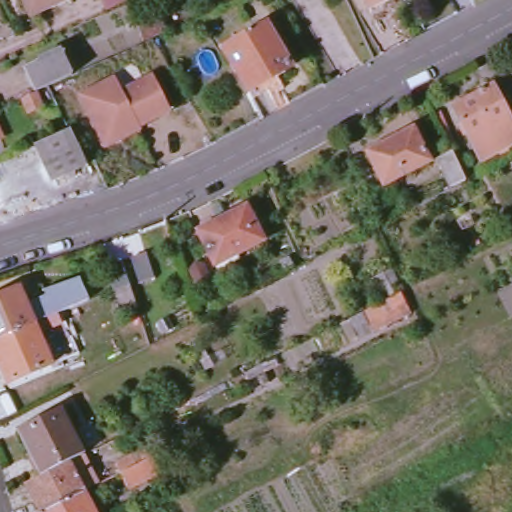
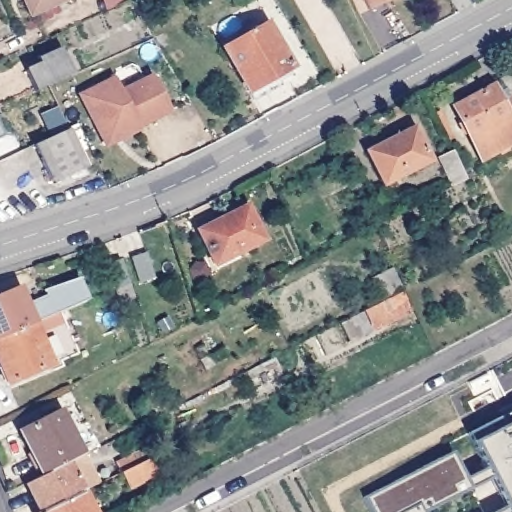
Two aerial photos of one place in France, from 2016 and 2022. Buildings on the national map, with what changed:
unchanged [(23,0),(70,0),(30,17),(23,0)]
unchanged [(365,0),(389,0),(370,9),(365,0)]
unchanged [(272,24),(295,70),(250,92),(227,45),(272,24)]
unchanged [(64,47),(75,71),(37,88),(25,63),(64,47)]
unchanged [(105,143),(103,139),(83,90),(119,75),(125,89),(157,75),(173,112),(140,126),(140,128),(105,143)]
unchanged [(512,134),(512,137),(477,155),(450,101),(487,83),(500,107),(508,103),(512,111),(512,132),(511,132),(512,134)]
unchanged [(460,141),(454,145),(439,117),(446,113),(460,141)]
unchanged [(55,181),(37,143),(67,129),(70,127),(88,165),(55,181)]
unchanged [(412,127),(430,161),(382,185),(365,151),(412,127)]
unchanged [(433,153),(447,147),(461,173),(447,180),(433,153)]
unchanged [(245,206),(262,240),(215,265),(197,231),(245,206)]
unchanged [(145,250),(153,275),(139,280),(131,256),(145,250)]
unchanged [(380,299),(368,276),(388,265),(396,279),(392,282),(397,291),(402,288),(410,305),(348,338),(337,320),(380,299)]
unchanged [(121,269),(122,271),(129,293),(115,298),(107,273),(121,269)]
unchanged [(15,286),(22,305),(43,297),(40,289),(67,278),(75,275),(85,299),(78,302),(30,323),(0,336),(0,293),(15,286)]
unchanged [(47,364),(2,383),(0,377),(0,336),(30,323),(47,364)]
unchanged [(58,407),(81,451),(77,453),(63,460),(45,469),(39,472),(18,426),(58,407)]
new [(366,498),(452,454),(465,478),(487,468),(474,442),(468,433),(512,413),(512,512),(497,512),(506,507),(492,477),(422,511),(423,512),(373,512),(366,498)]
unchanged [(147,456),(151,453),(161,471),(124,488),(109,460),(141,444),(147,456)]
unchanged [(23,480),(32,476),(39,472),(45,469),(63,460),(77,487),(57,498),(36,508),(22,481),(23,480)]
unchanged [(31,511),(36,508),(57,498),(77,487),(90,512),(32,512),(31,511)]

